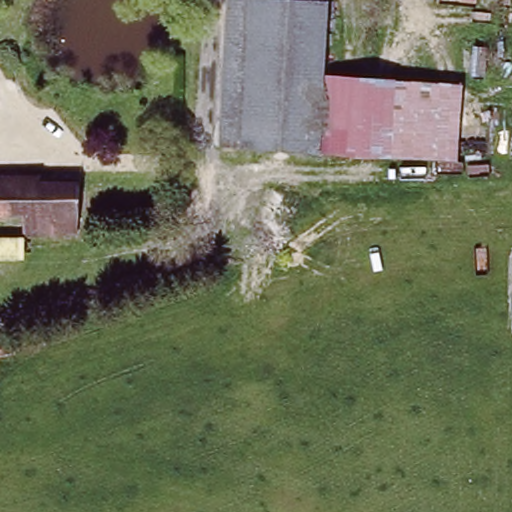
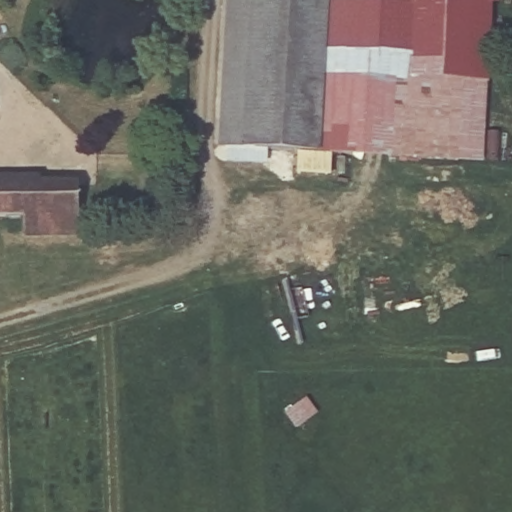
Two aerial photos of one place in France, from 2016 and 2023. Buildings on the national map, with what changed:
unchanged [(323,0),(329,0),(329,71),(457,80),(454,160),(221,143),(230,0),(323,0)]
new [(329,71),(329,0),(371,2),(371,0),(499,0),(499,4),(493,4),(491,81),(488,80),(483,162),(454,160),(457,80),(329,71)]
unchanged [(77,172),(81,210),(78,230),(45,236),(47,245),(28,248),(21,209),(0,213),(0,180),(77,172)]

